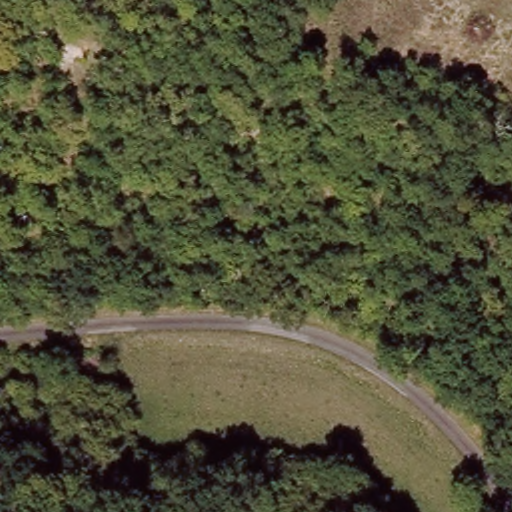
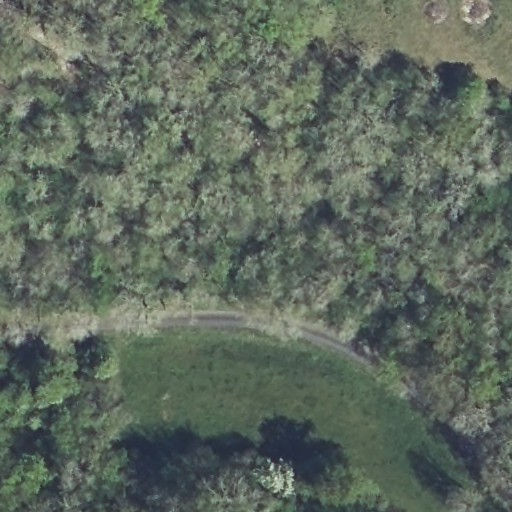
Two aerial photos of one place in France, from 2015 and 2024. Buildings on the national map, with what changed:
[]

